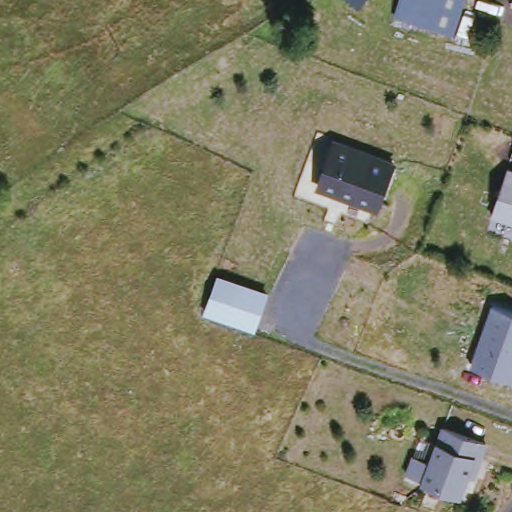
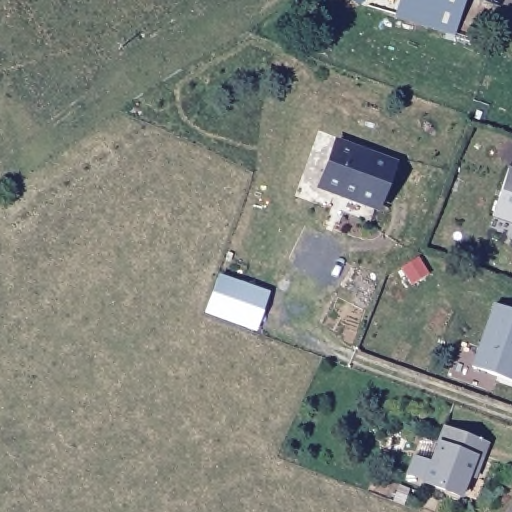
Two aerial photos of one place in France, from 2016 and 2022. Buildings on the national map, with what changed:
unchanged [(356,9),(345,0),(363,0),(356,9)]
unchanged [(393,13),(398,0),(462,0),(450,34),(393,13)]
unchanged [(389,165),(373,210),(315,190),(330,145),(389,165)]
unchanged [(503,165),(512,168),(512,219),(488,212),(503,165)]
unchanged [(267,293),(255,328),(206,311),(218,276),(267,293)]
unchanged [(512,381),(470,366),(491,305),(512,311),(512,381)]
unchanged [(470,476),(462,497),(426,484),(446,430),(488,445),(482,461),(476,478),(470,476)]

